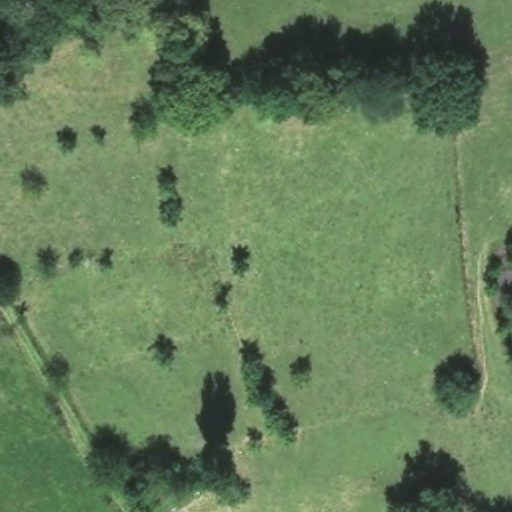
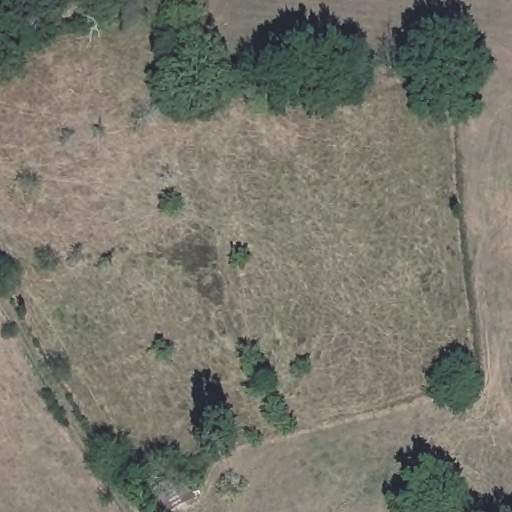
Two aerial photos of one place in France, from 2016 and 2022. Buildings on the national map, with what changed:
unchanged [(172,473),(190,498),(172,512),(159,512),(145,492),(172,473)]

